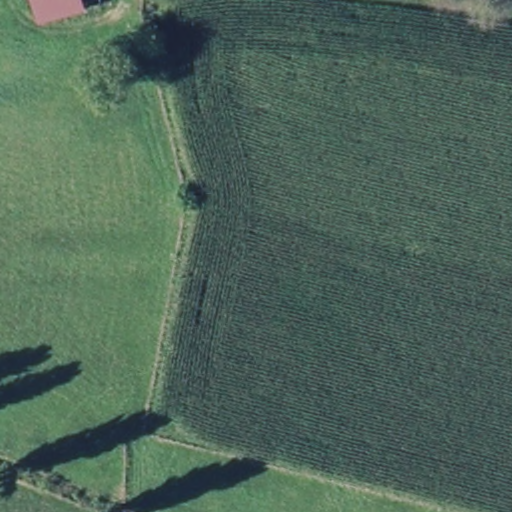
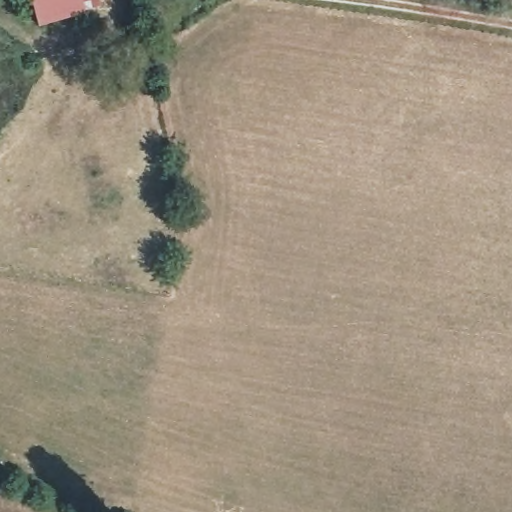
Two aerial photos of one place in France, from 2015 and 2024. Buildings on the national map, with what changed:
unchanged [(37,27),(29,0),(77,0),(81,16),(37,27)]

